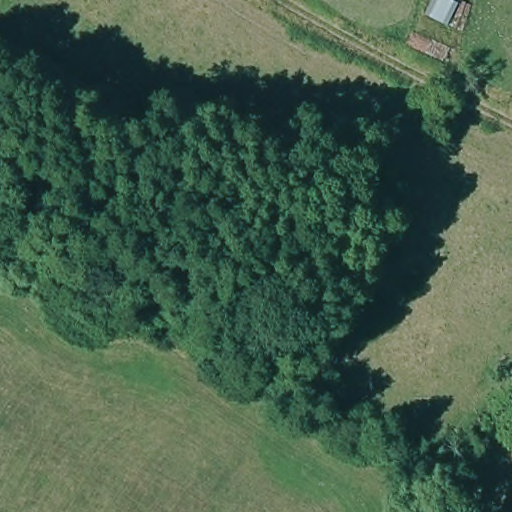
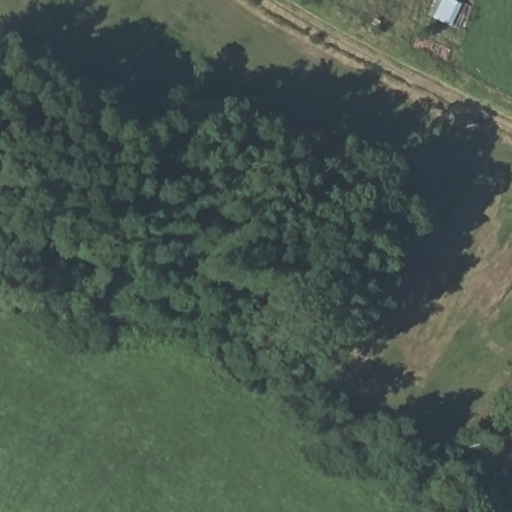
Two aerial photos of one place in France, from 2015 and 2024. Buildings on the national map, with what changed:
unchanged [(458,32),(423,15),(430,0),(457,0),(470,6),(458,32)]
unchanged [(410,31),(460,54),(455,68),(404,45),(410,31)]

